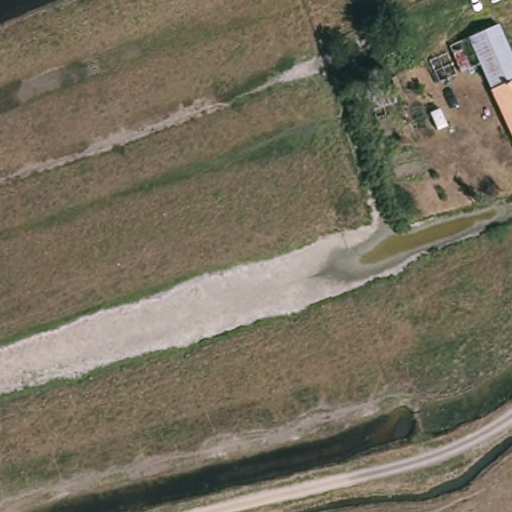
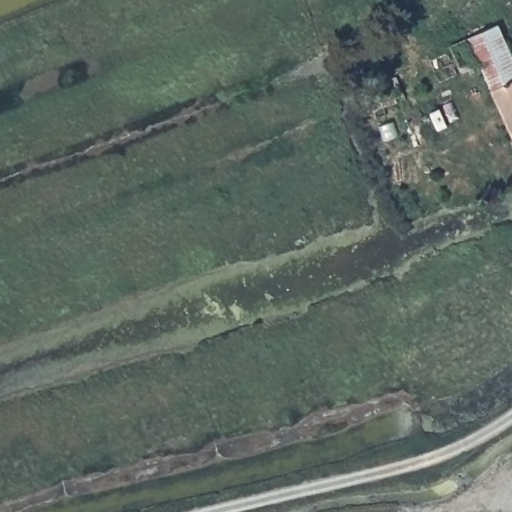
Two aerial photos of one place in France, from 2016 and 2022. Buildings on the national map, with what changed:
unchanged [(445,50),(495,28),(507,56),(512,54),(512,149),(476,69),(457,78),(445,50)]

